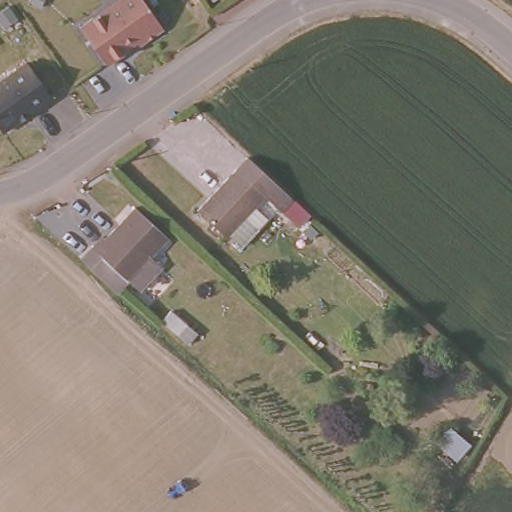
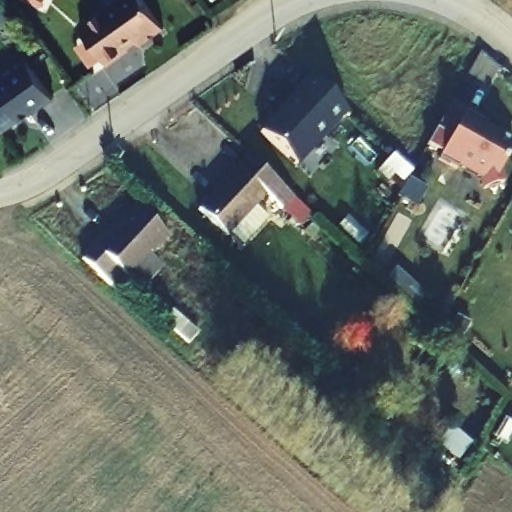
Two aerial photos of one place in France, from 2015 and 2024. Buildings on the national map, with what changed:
unchanged [(85,16),(108,0),(155,0),(168,19),(144,36),(141,31),(110,52),(109,52),(85,16)]
unchanged [(31,100),(4,119),(0,114),(0,71),(31,50),(56,87),(32,103),(31,100)]
new [(268,115),(270,117),(281,104),(280,103),(291,91),(289,89),(302,74),(341,109),(290,164),(254,131),(268,115)]
new [(430,125),(446,134),(460,108),(482,120),(480,125),(510,141),(495,168),(499,180),(479,186),(476,174),(454,162),(452,167),(433,157),(436,151),(421,143),(430,125)]
unchanged [(276,189),(260,205),(272,217),(249,243),(206,203),(253,149),(298,189),(287,201),(276,189)]
unchanged [(149,290),(136,280),(125,291),(86,258),(110,233),(114,236),(141,206),(174,236),(156,257),(169,268),(156,283),(149,290)]
unchanged [(437,443),(447,430),(468,447),(457,461),(437,443)]

